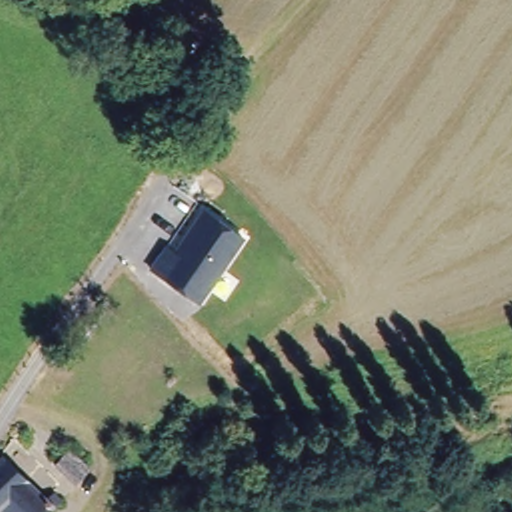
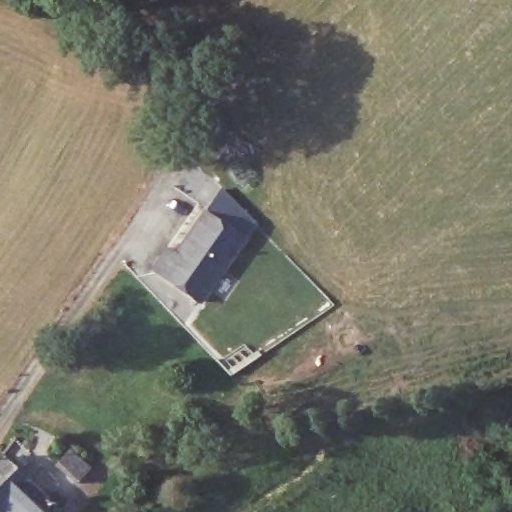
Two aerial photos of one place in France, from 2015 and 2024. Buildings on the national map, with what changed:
unchanged [(244,235),(199,299),(151,265),(162,250),(167,243),(175,249),(205,207),(244,235)]
unchanged [(10,512),(0,502),(0,503),(0,453),(5,448),(49,494),(56,488),(65,497),(48,512),(10,512)]
unchanged [(55,469),(72,452),(90,470),(74,490),(55,469)]

